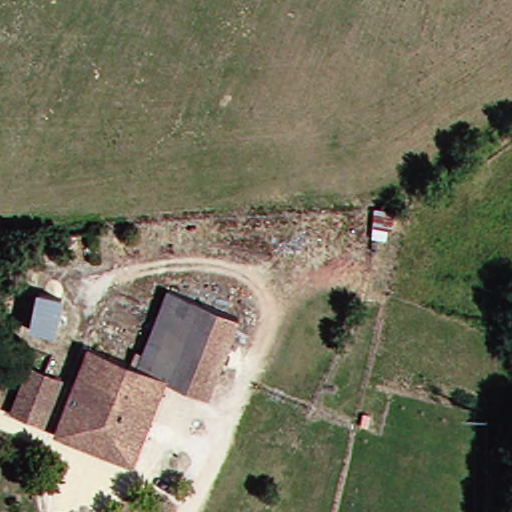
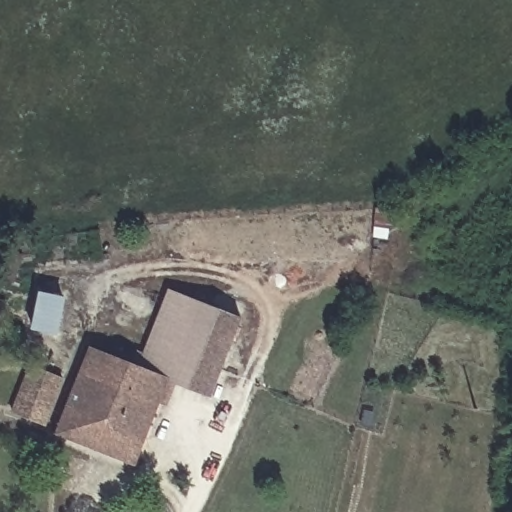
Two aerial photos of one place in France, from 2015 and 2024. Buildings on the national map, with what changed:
unchanged [(146,361),(177,285),(244,312),(213,396),(169,379),(172,372),(146,361)]
unchanged [(46,291),(68,295),(63,328),(41,325),(46,291)]
unchanged [(96,341),(146,361),(172,372),(169,379),(146,440),(68,410),(96,341)]
unchanged [(51,416),(51,419),(19,404),(33,368),(64,381),(51,416)]
unchanged [(136,469),(57,436),(68,410),(146,440),(136,469)]

